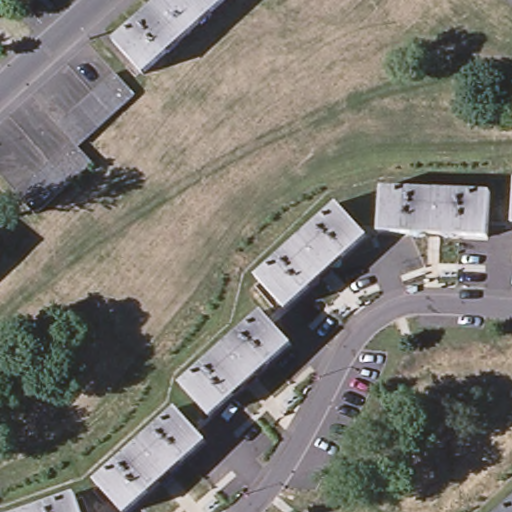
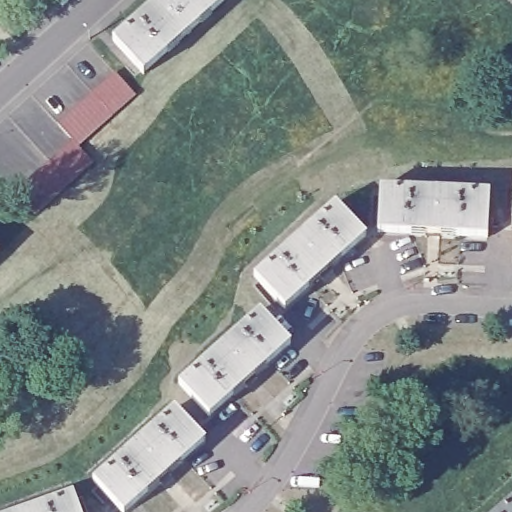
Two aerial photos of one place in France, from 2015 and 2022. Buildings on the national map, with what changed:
unchanged [(227,0),(143,76),(115,45),(166,0),(227,0)]
unchanged [(137,98),(82,146),(95,163),(35,211),(16,189),(73,138),(59,122),(114,70),(137,98)]
unchanged [(380,229),(382,188),(487,193),(486,234),(380,229)]
unchanged [(282,310),(255,279),(333,208),(360,239),(282,310)]
unchanged [(210,418),(182,387),(262,314),(290,346),(210,418)]
unchanged [(131,512),(121,512),(98,486),(175,412),(205,444),(131,512)]
unchanged [(74,499),(78,512),(37,512),(74,499)]
unchanged [(512,500),(512,512),(499,512),(512,500)]

